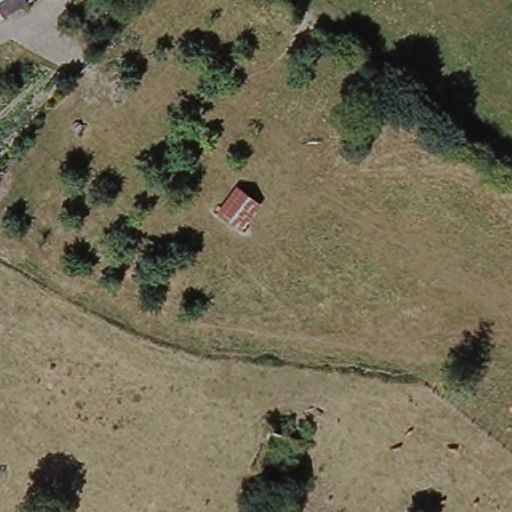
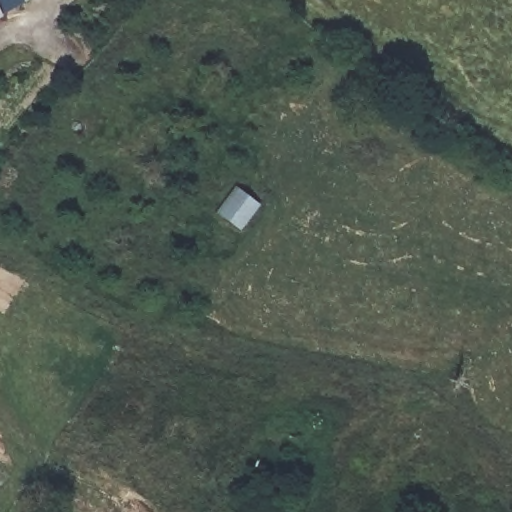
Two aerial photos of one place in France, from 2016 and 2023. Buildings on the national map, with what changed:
unchanged [(0,0),(29,0),(30,1),(0,18),(0,0)]
unchanged [(29,0),(32,0),(30,1),(29,0)]
unchanged [(238,183),(259,200),(237,225),(216,207),(238,183)]

